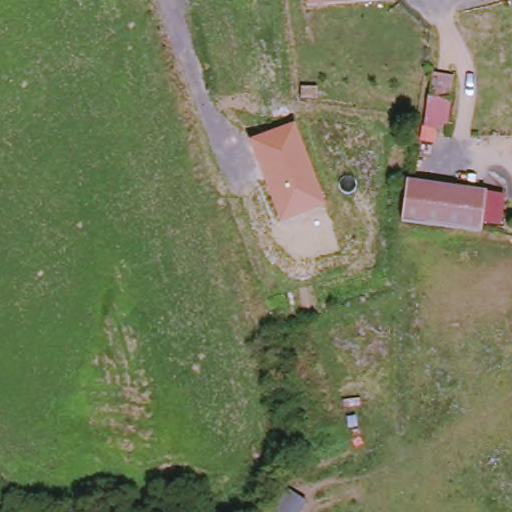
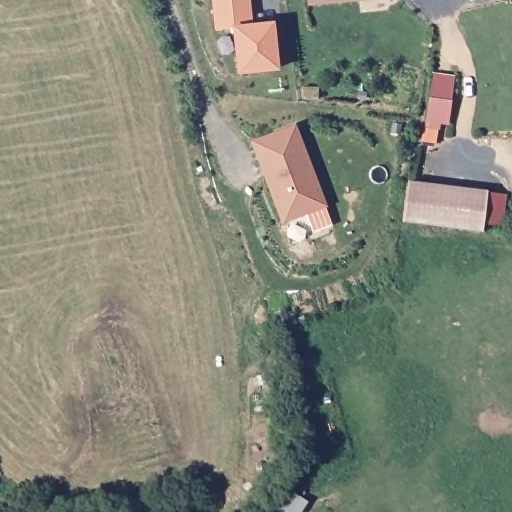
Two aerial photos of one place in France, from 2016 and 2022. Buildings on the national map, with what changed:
new [(236,74),(232,28),(215,30),(211,0),(250,0),(252,24),(273,22),(278,71),(236,74)]
unchanged [(462,75),(454,145),(424,145),(435,73),(462,75)]
unchanged [(249,142),(295,125),(327,207),(280,224),(249,142)]
unchanged [(496,191),(492,235),(406,225),(415,184),(496,191)]

